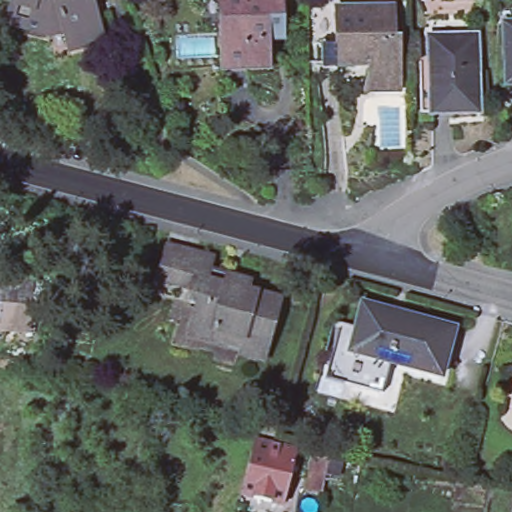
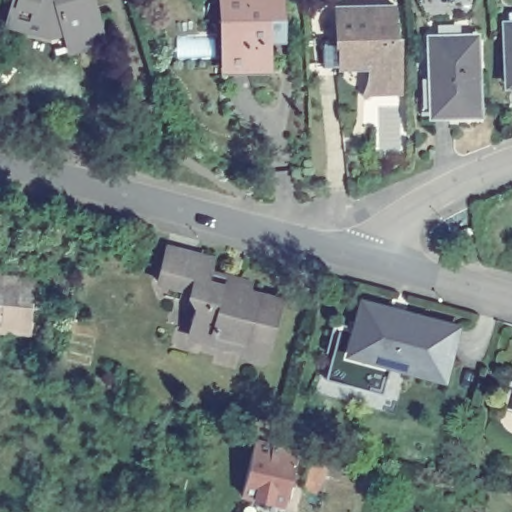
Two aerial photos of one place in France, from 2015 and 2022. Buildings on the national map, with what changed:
unchanged [(87,5),(91,4),(103,44),(71,53),(63,29),(52,30),(28,24),(26,28),(9,23),(15,0),(86,0),(87,5)]
unchanged [(224,72),(223,0),(282,0),(282,28),(271,29),(272,71),(224,72)]
unchanged [(326,42),(343,42),(343,9),(399,8),(399,42),(404,42),(406,91),(371,91),(375,81),(374,70),(346,70),(327,71),(326,42)]
unchanged [(506,22),(512,21),(512,83),(509,84),(506,22)]
unchanged [(480,114),(434,116),(433,40),(477,39),(480,114)]
unchanged [(239,361),(241,354),(211,344),(211,349),(189,343),(198,312),(188,309),(191,294),(161,285),(169,252),(214,264),(208,284),(225,289),(226,283),(243,288),(241,294),(279,305),(263,368),(239,361)]
unchanged [(33,282),(33,337),(0,335),(0,280),(33,282)]
unchanged [(372,302),(464,326),(451,374),(398,361),(381,357),(383,349),(362,344),(366,328),(372,302)]
unchanged [(394,375),(345,362),(354,325),(366,328),(362,344),(383,349),(381,357),(398,361),(394,375)]
unchanged [(256,443),(273,447),(299,454),(291,486),(286,507),(243,498),(253,457),(256,443)]
unchanged [(331,461),(324,495),(306,492),(312,457),(331,461)]

